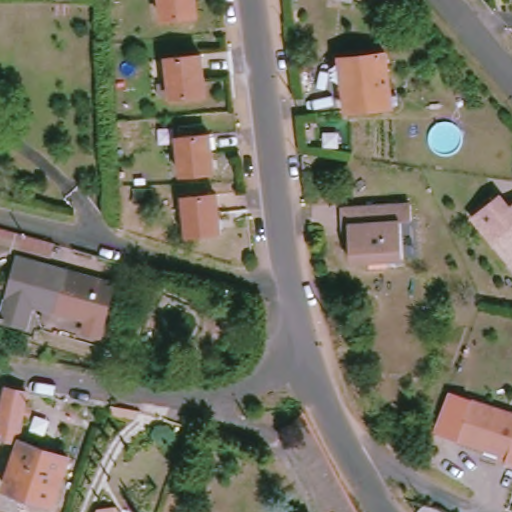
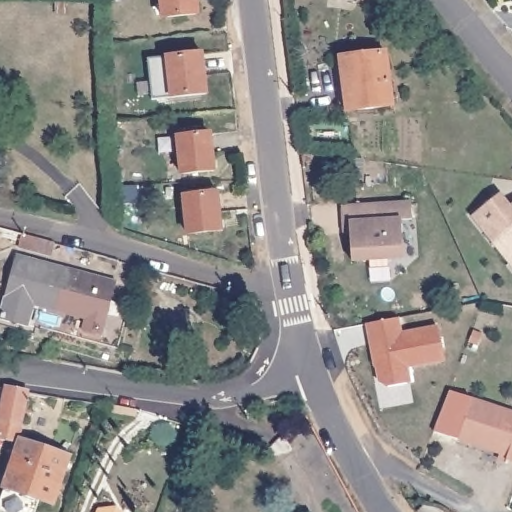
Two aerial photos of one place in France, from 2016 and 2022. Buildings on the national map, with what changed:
unchanged [(158,0),(194,0),(195,11),(160,16),(158,0)]
unchanged [(168,96),(164,54),(200,51),(203,91),(168,96)]
unchanged [(388,111),(342,115),(337,56),(385,54),(388,111)]
unchanged [(177,171),(172,136),(207,132),(211,167),(177,171)]
unchanged [(184,231),(180,195),(213,192),(216,229),(184,231)]
unchanged [(488,245),(467,220),(491,200),(501,211),(512,202),(512,276),(504,266),(488,245)]
unchanged [(341,262),(337,207),(400,201),(400,220),(390,220),(393,258),(341,262)]
unchanged [(50,239),(45,255),(0,248),(0,229),(50,239)]
unchanged [(108,277),(98,330),(80,327),(81,313),(27,302),(25,315),(7,311),(19,256),(108,277)]
new [(443,362),(408,368),(411,383),(385,387),(378,382),(367,325),(400,319),(403,333),(437,326),(443,362)]
unchanged [(24,400),(20,428),(0,425),(5,395),(24,400)]
unchanged [(500,455),(453,438),(465,400),(512,415),(512,466),(498,461),(500,455)]
unchanged [(60,456),(46,503),(0,488),(0,485),(13,440),(60,456)]
unchanged [(92,506),(99,501),(108,502),(117,507),(122,512),(90,512),(92,506)]

